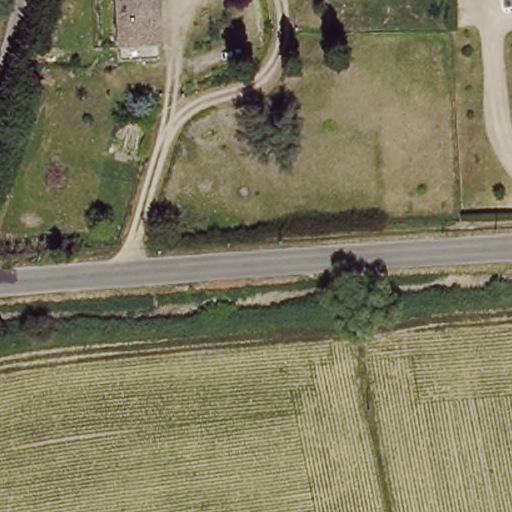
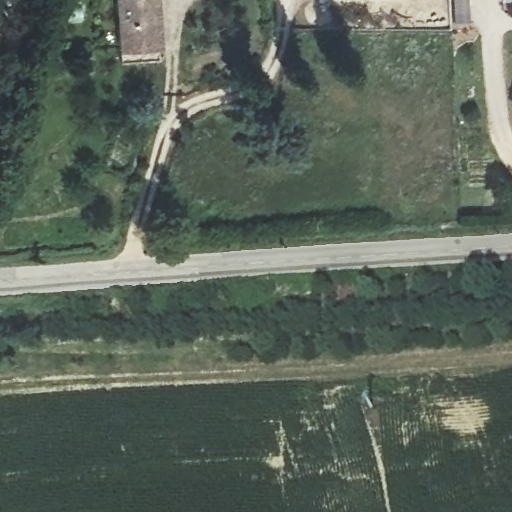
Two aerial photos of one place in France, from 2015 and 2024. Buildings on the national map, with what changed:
unchanged [(146,42),(135,44),(112,45),(110,0),(144,0),(146,42)]

